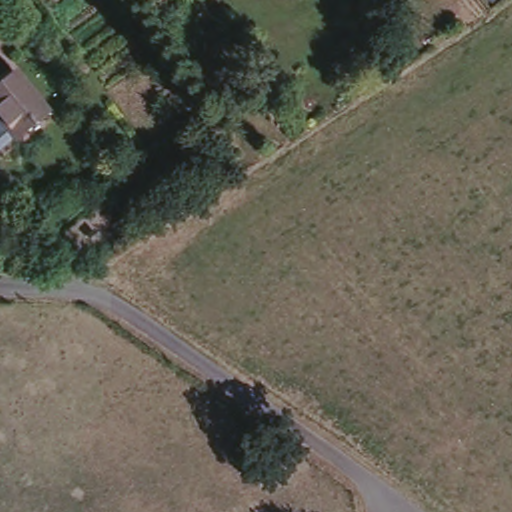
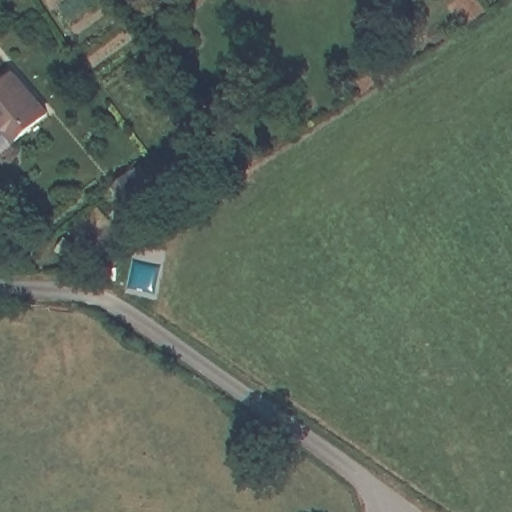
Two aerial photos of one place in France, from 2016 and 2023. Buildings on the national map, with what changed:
unchanged [(0,80),(15,68),(48,108),(15,136),(0,118),(0,80)]
unchanged [(130,173),(140,166),(155,185),(145,192),(129,205),(114,186),(130,173)]

